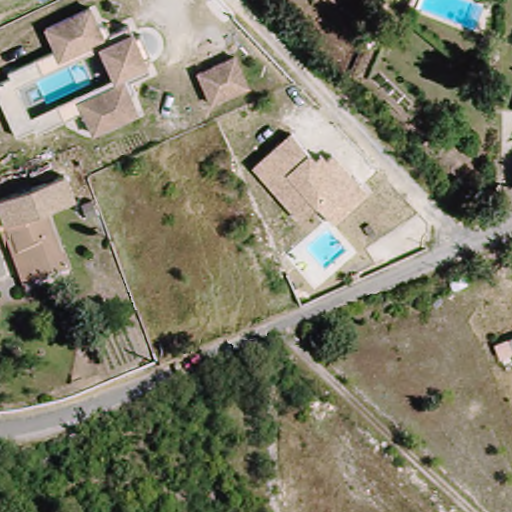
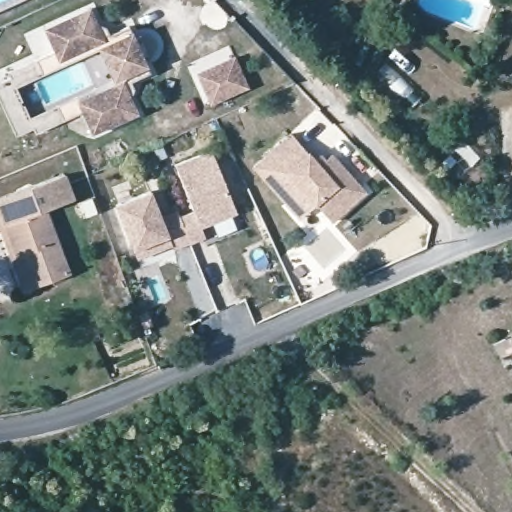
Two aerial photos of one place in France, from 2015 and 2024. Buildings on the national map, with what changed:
unchanged [(119,80),(105,49),(97,46),(64,61),(50,30),(95,10),(102,25),(111,28),(114,36),(134,27),(155,72),(136,81),(139,89),(136,99),(142,113),(98,134),(87,111),(81,97),(119,80)]
unchanged [(217,104),(203,74),(240,57),(253,87),(217,104)]
unchanged [(252,166),(291,134),(307,152),(316,160),(322,153),(327,160),(333,153),(367,192),(333,224),(319,205),(317,207),(315,204),(300,220),(252,166)]
new [(214,150),(239,213),(203,227),(207,237),(192,244),(182,218),(197,212),(178,165),(214,150)]
unchanged [(0,236),(0,206),(1,205),(0,204),(0,200),(63,176),(71,202),(49,210),(70,275),(38,286),(26,289),(17,257),(10,234),(0,236)]
new [(133,245),(117,205),(152,192),(163,219),(180,211),(182,218),(192,244),(176,250),(174,245),(159,251),(139,260),(133,245)]

